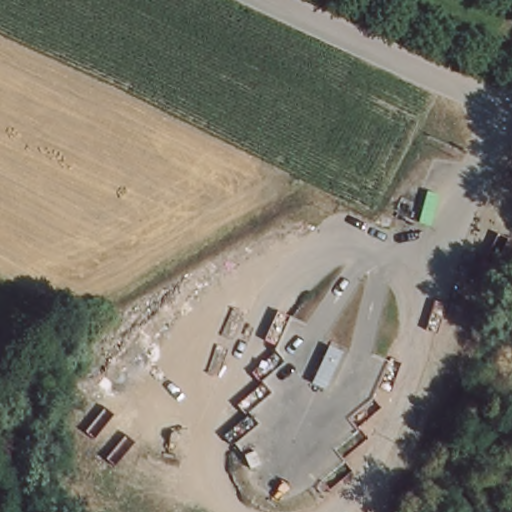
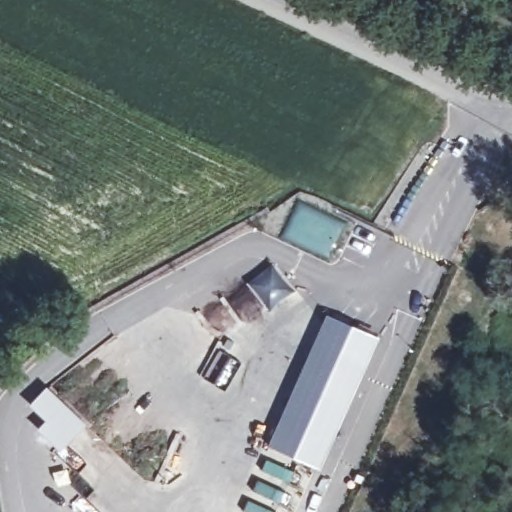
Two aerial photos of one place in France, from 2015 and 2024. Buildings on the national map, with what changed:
new [(327,315),(380,338),(322,470),(270,445),(327,315)]
new [(40,430),(47,420),(30,405),(50,386),(90,424),(63,452),(40,430)]

